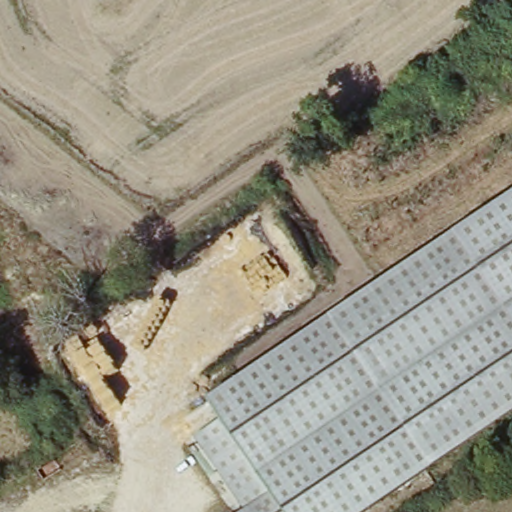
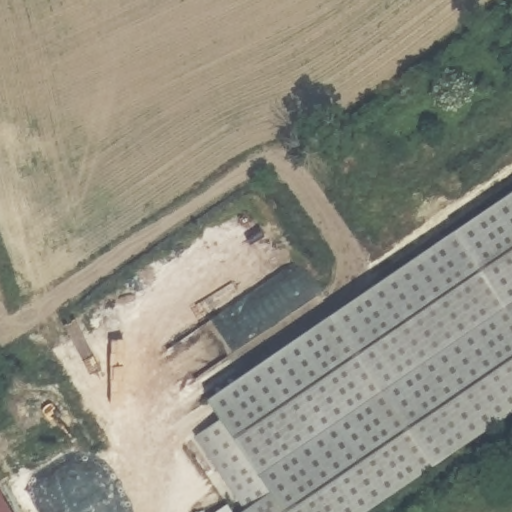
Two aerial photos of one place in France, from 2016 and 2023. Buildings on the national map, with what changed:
unchanged [(197,436),(220,419),(208,400),(512,192),(512,413),(367,512),(244,512),(245,511),(197,436)]

